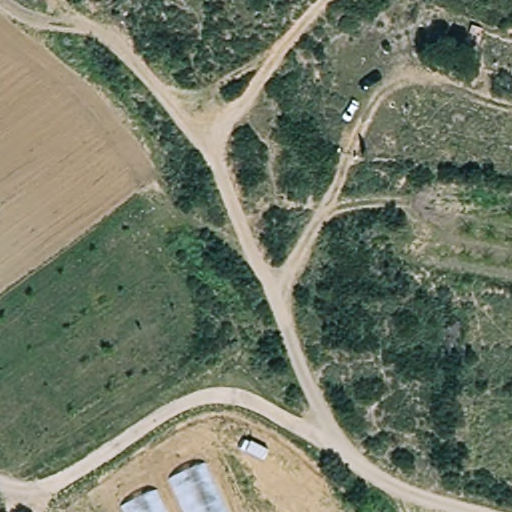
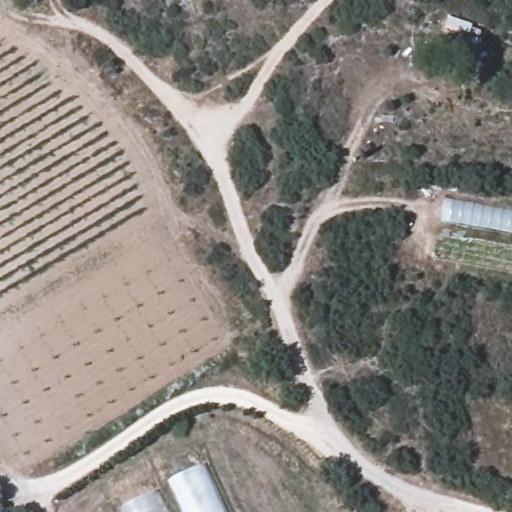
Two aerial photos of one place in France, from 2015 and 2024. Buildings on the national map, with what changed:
new [(440,221),(445,198),(512,210),(512,235),(440,221)]
unchanged [(172,484),(170,478),(210,462),(232,512),(126,512),(123,505),(172,484)]

